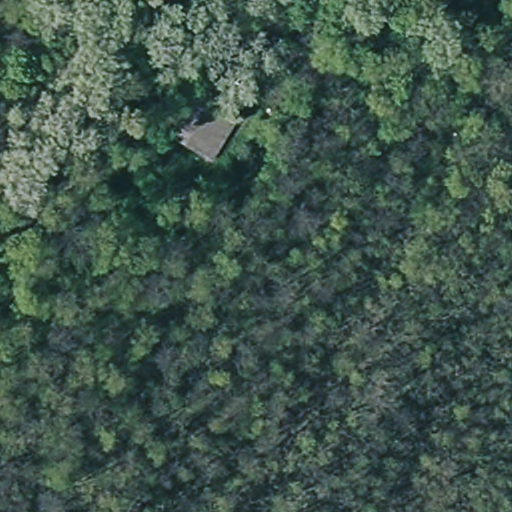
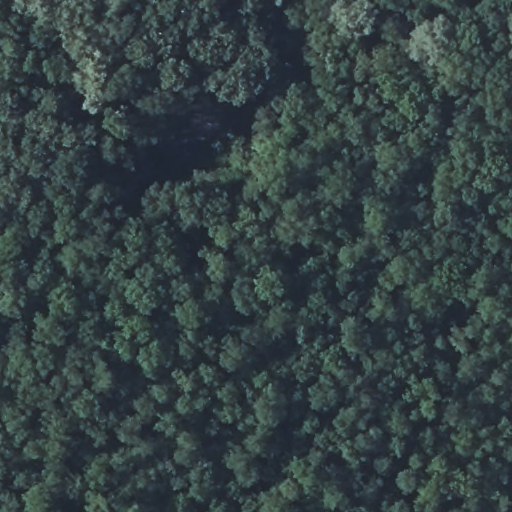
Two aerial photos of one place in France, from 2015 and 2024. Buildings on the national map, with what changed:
unchanged [(307,24),(329,42),(319,55),(297,36),(307,24)]
unchanged [(299,70),(311,80),(290,109),(276,100),(299,70)]
unchanged [(186,145),(207,107),(235,122),(214,164),(186,145)]

